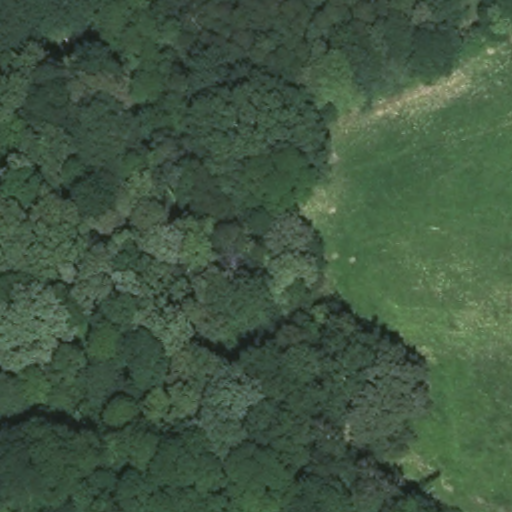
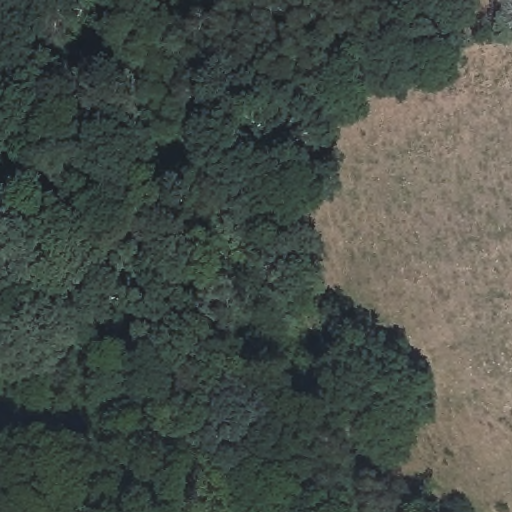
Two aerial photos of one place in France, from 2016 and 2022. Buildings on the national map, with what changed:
unchanged [(493,40),(486,5),(500,0),(502,0),(510,35),(493,40)]

